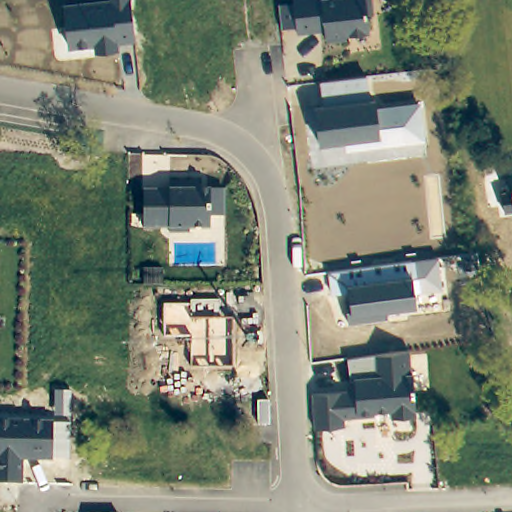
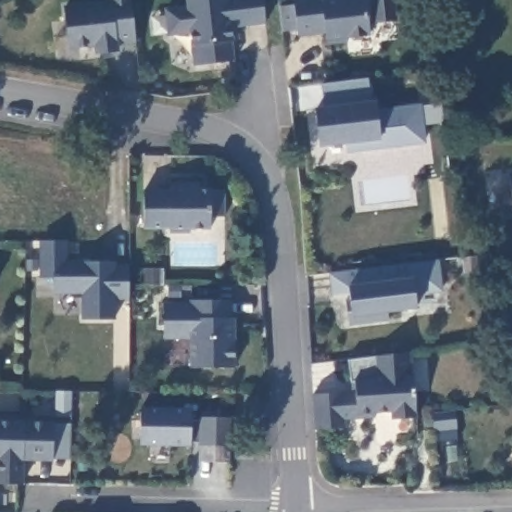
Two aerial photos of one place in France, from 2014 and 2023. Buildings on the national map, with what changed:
unchanged [(120,46),(120,51),(95,54),(95,49),(69,52),(62,5),(100,0),(132,0),(137,44),(120,46)]
new [(235,60),(195,64),(191,30),(169,33),(165,8),(188,5),(187,0),(263,0),(265,22),(230,25),(235,60)]
unchanged [(370,20),(371,35),(346,38),(347,45),(326,48),(325,35),(297,38),(296,30),(282,32),(280,5),(292,4),(292,0),(321,0),(325,0),(374,0),(375,20),(370,20)]
unchanged [(426,145),(346,154),(345,144),(320,147),(315,108),(323,107),(320,84),(367,78),(370,101),(376,100),(377,109),(421,104),(426,145)]
unchanged [(512,172),(512,187),(510,172),(512,172)]
unchanged [(225,218),(211,219),(210,230),(190,229),(190,234),(169,234),(169,229),(144,229),(144,189),(226,189),(225,218)]
unchanged [(501,195),(512,194),(512,216),(504,217),(501,195)]
new [(130,299),(115,299),(114,319),(81,319),(81,293),(54,294),(53,278),(40,278),(40,239),(67,239),(69,259),(127,261),(130,299)]
unchanged [(442,295),(416,298),(417,309),(388,314),(389,320),(348,325),(344,294),(332,295),(330,274),(438,259),(442,295)]
unchanged [(191,368),(191,338),(165,337),(165,300),(220,302),(220,319),(234,319),(235,368),(191,368)]
unchanged [(416,417),(391,419),(390,413),(375,414),(375,419),(345,422),(345,429),(313,429),(312,394),(350,391),(348,359),(411,353),(416,417)]
new [(200,438),(190,437),(190,439),(140,439),(141,403),(191,404),(190,413),(200,414),(201,411),(231,412),(230,441),(230,456),(199,456),(200,440),(200,438)]
unchanged [(70,460),(54,460),(54,463),(23,463),(23,484),(0,483),(0,420),(54,421),(54,424),(71,423),(70,460)]

